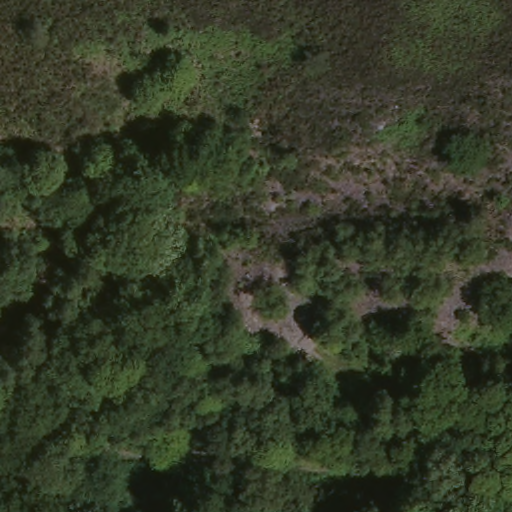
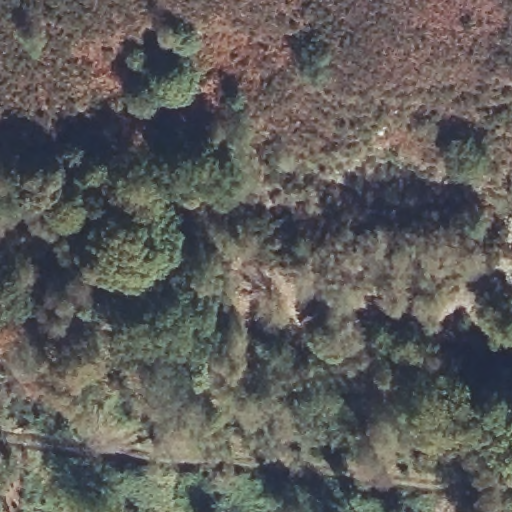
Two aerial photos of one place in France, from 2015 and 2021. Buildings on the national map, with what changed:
[]

